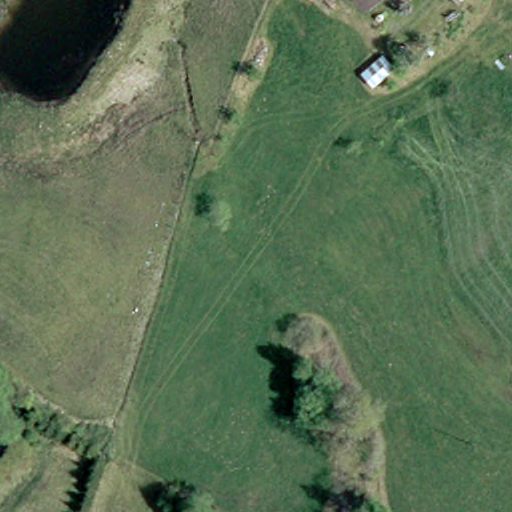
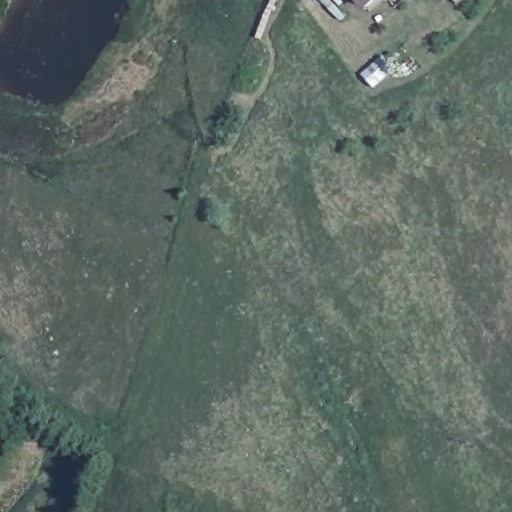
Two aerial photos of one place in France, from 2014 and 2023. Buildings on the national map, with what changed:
unchanged [(362,0),(393,0),(374,14),(362,0)]

